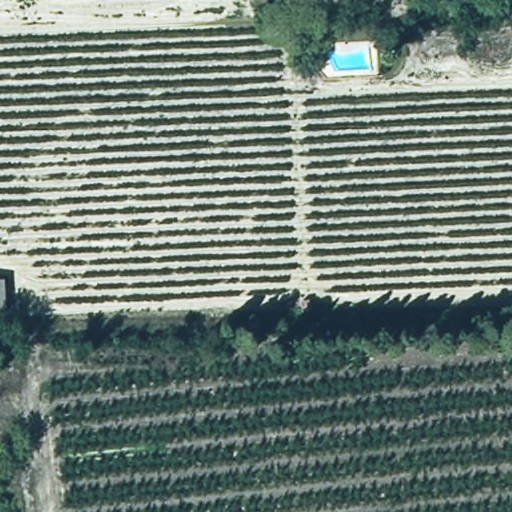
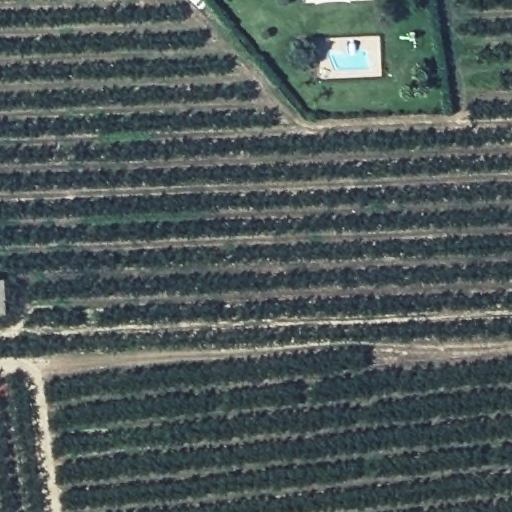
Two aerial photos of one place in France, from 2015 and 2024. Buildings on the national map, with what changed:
unchanged [(5,314),(0,314),(0,281),(3,281),(5,314)]

